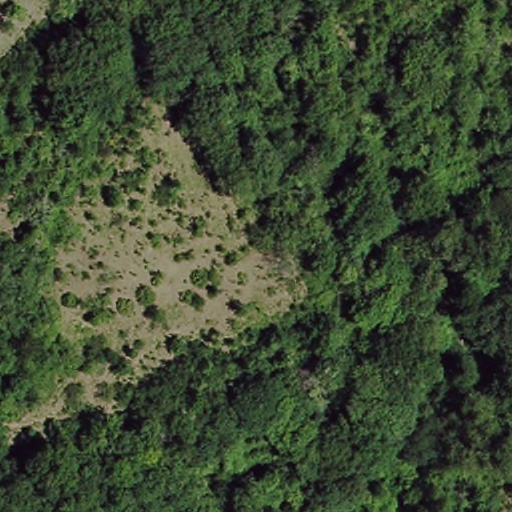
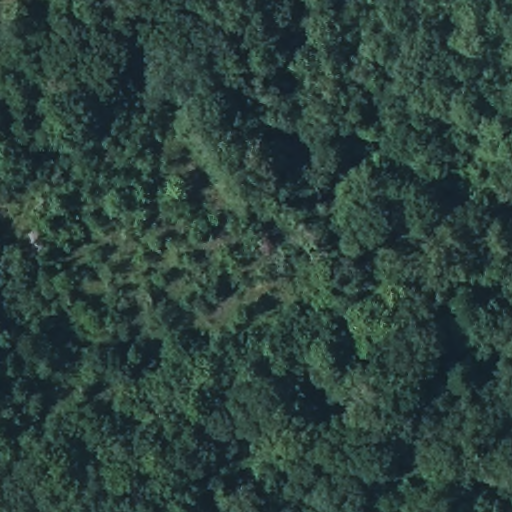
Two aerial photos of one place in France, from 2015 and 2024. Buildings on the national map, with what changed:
[]

